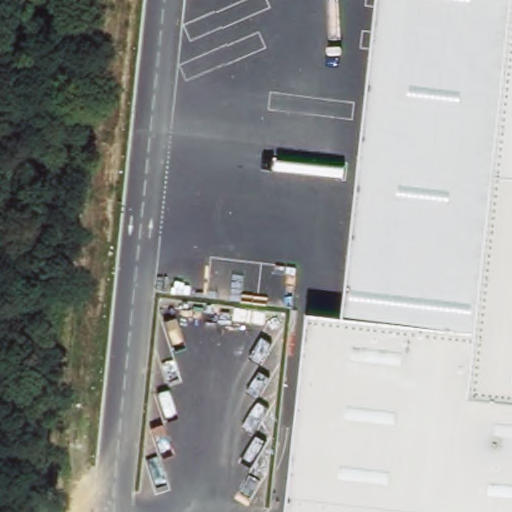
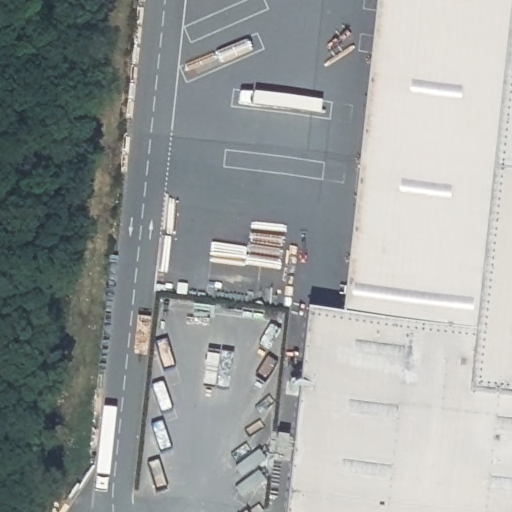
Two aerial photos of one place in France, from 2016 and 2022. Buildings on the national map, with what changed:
unchanged [(342,316),(377,0),(512,0),(512,9),(477,329),(342,316)]
unchanged [(512,9),(512,512),(285,512),(306,313),(477,329),(512,9)]

